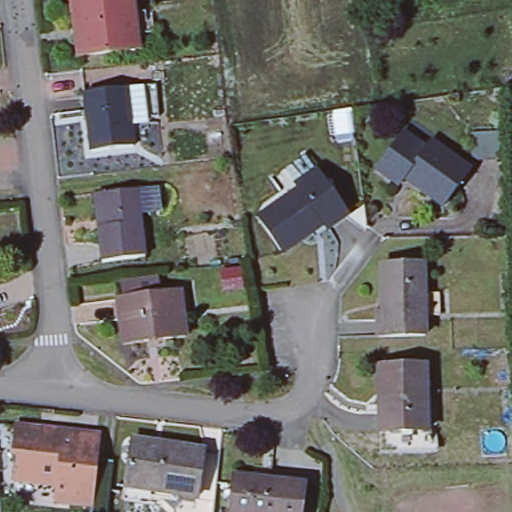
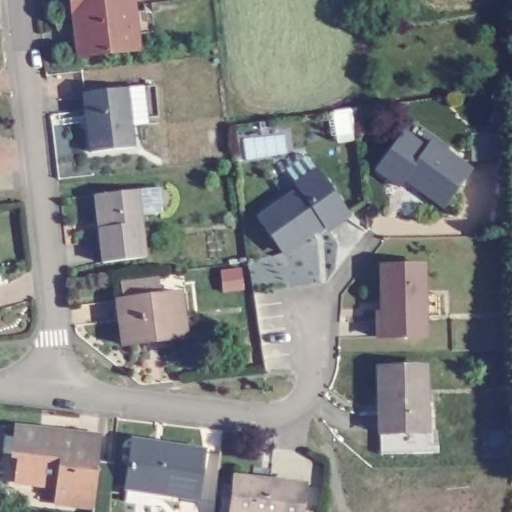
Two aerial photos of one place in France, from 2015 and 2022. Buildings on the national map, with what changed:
unchanged [(80,50),(75,0),(135,0),(140,44),(80,50)]
unchanged [(127,84),(135,143),(93,150),(85,89),(127,84)]
unchanged [(391,186),(370,170),(399,131),(420,148),(415,155),(430,166),(440,152),(465,171),(437,209),(410,189),(414,185),(399,175),(391,186)]
unchanged [(299,183),(296,179),(315,166),(346,209),(327,223),(322,218),(282,247),(257,212),(299,183)]
unchanged [(103,227),(100,195),(135,191),(142,259),(101,263),(97,228),(103,227)]
unchanged [(434,310),(417,311),(418,332),(371,334),(370,312),(377,312),(375,263),(416,261),(417,291),(433,291),(434,310)]
unchanged [(178,294),(183,339),(162,341),(161,338),(145,340),(146,343),(120,345),(115,301),(178,294)]
unchanged [(381,415),(379,377),(424,374),(429,439),(389,441),(384,441),(381,415)]
unchanged [(51,503),(53,485),(12,481),(15,455),(10,455),(12,427),(39,430),(38,434),(48,436),(49,431),(97,436),(95,462),(90,507),(51,503)]
unchanged [(125,496),(127,483),(134,436),(205,447),(198,494),(158,488),(157,501),(125,496)]
unchanged [(95,462),(110,463),(106,512),(89,512),(90,507),(95,462)]
unchanged [(238,474),(307,483),(304,512),(234,512),(238,474)]

